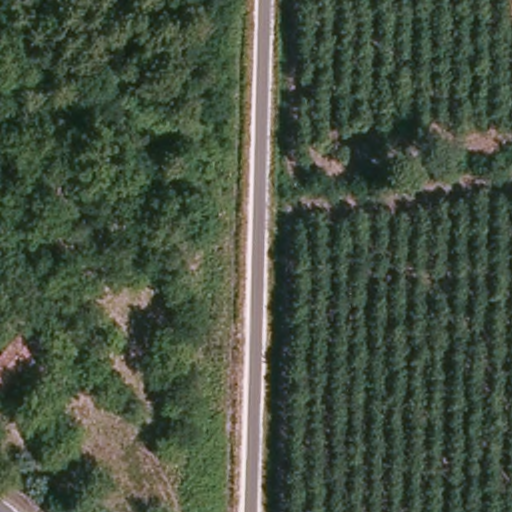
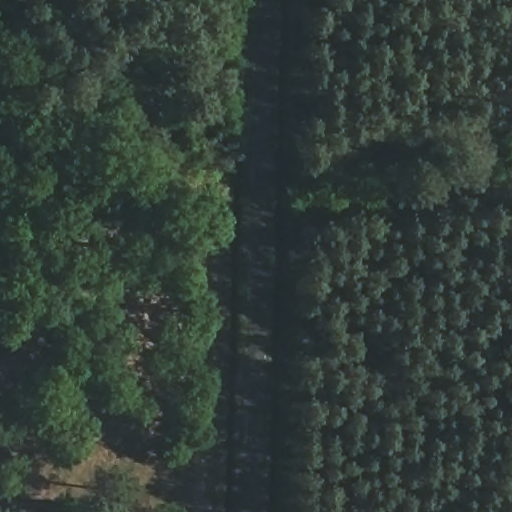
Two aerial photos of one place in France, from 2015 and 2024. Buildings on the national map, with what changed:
unchanged [(0,196),(14,210),(0,224),(0,196)]
unchanged [(0,337),(0,332),(2,334),(0,337)]
unchanged [(39,347),(0,390),(0,365),(27,335),(39,347)]

